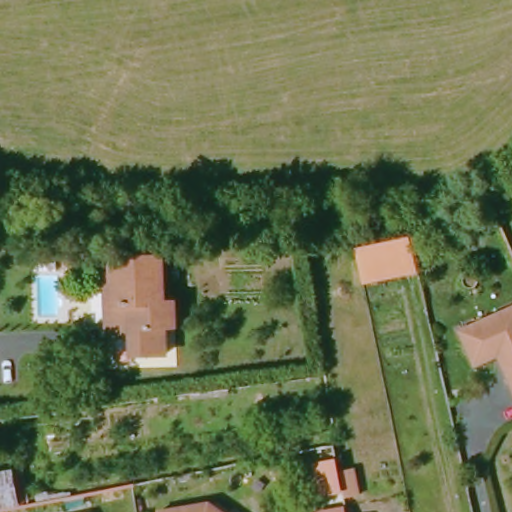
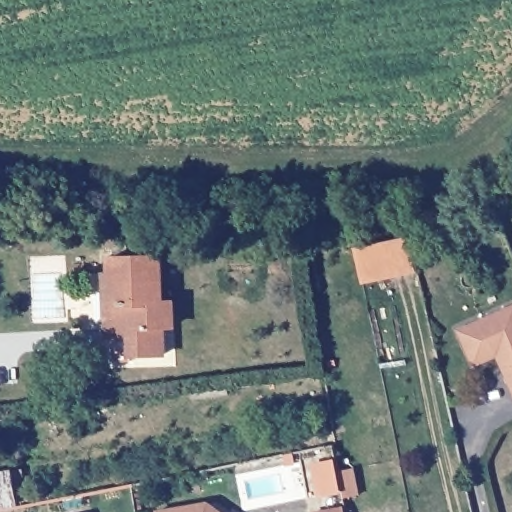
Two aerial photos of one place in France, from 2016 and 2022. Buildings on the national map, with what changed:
unchanged [(352,250),(404,238),(414,278),(362,293),(352,250)]
unchanged [(99,327),(97,286),(96,271),(103,272),(103,256),(153,256),(153,302),(165,302),(166,324),(156,325),(157,353),(124,353),(123,335),(99,335),(99,327)]
unchanged [(512,379),(498,349),(493,352),(496,357),(478,365),(459,330),(512,306),(512,379)]
unchanged [(337,471),(341,498),(328,500),(323,473),(337,471)]
unchanged [(161,510),(211,502),(223,510),(225,512),(161,512),(161,510)]
unchanged [(349,509),(349,512),(328,512),(349,509)]

